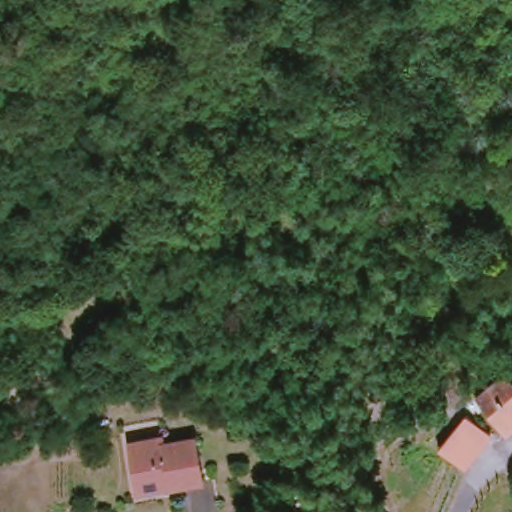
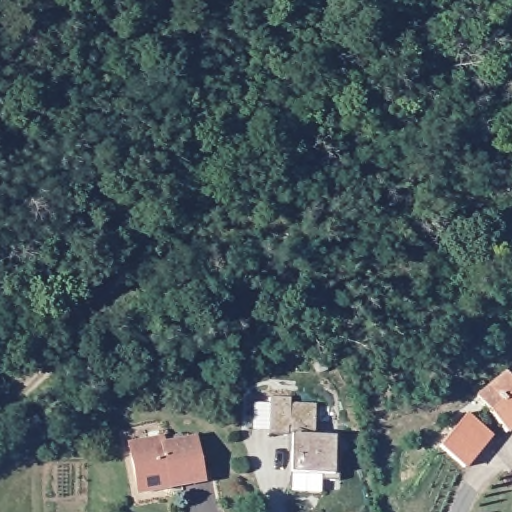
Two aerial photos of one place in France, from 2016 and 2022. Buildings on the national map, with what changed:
unchanged [(477,392),(504,374),(511,383),(512,383),(512,424),(502,431),(477,392)]
new [(270,430),(254,431),(255,403),(270,403),(271,397),(290,398),(290,402),(315,403),(315,435),(335,437),(334,476),(322,475),(320,494),(290,492),(290,473),(292,435),(270,436),(270,430)]
unchanged [(446,431),(470,408),(492,432),(462,460),(452,450),(440,437),(446,431)]
unchanged [(133,487),(127,445),(192,435),(201,482),(167,489),(135,495),(133,487)]

